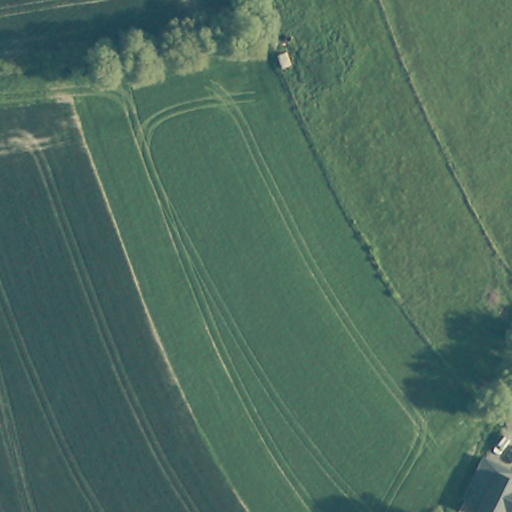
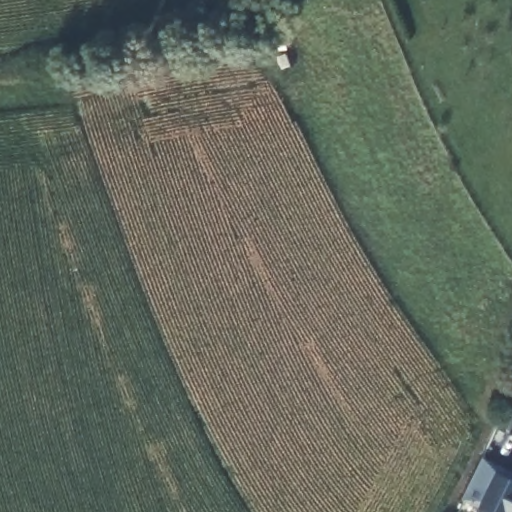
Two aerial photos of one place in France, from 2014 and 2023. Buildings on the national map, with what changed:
unchanged [(507,475),(512,477),(512,512),(499,512),(490,512),(472,503),(473,501),(455,492),(459,484),(461,481),(472,458),(476,451),(494,460),(511,468),(507,475)]

